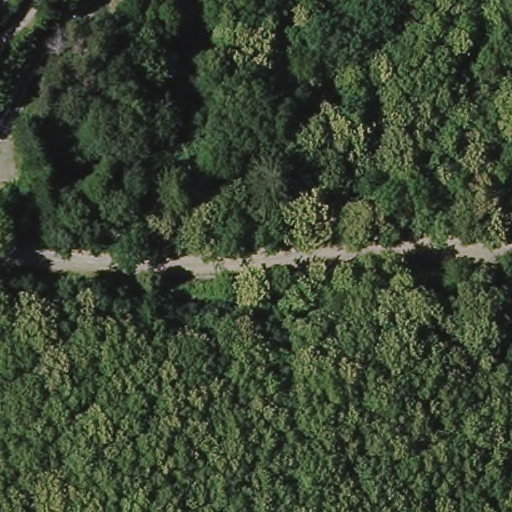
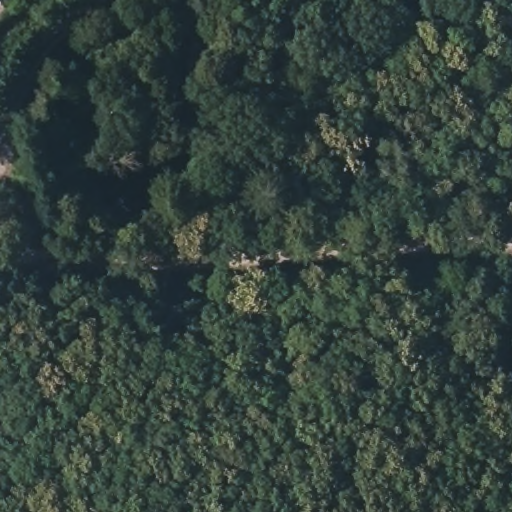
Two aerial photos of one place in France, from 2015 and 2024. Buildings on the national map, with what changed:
[]

